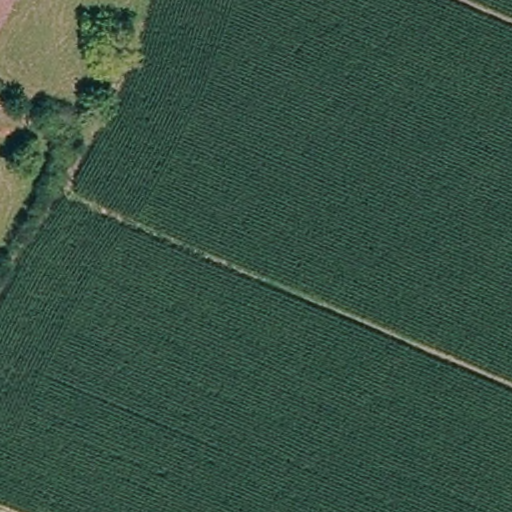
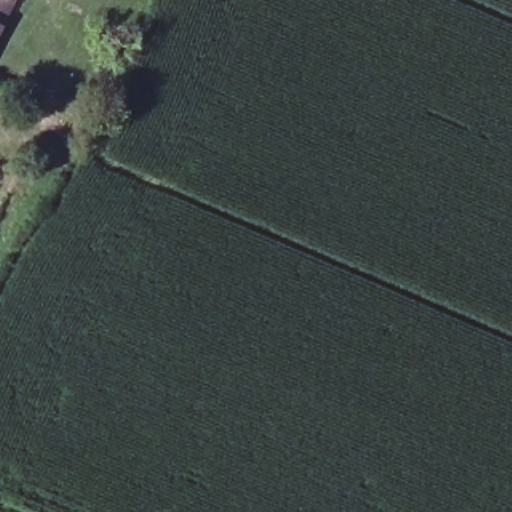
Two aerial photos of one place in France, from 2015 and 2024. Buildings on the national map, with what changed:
unchanged [(0,30),(0,0),(15,0),(9,11),(0,30)]

